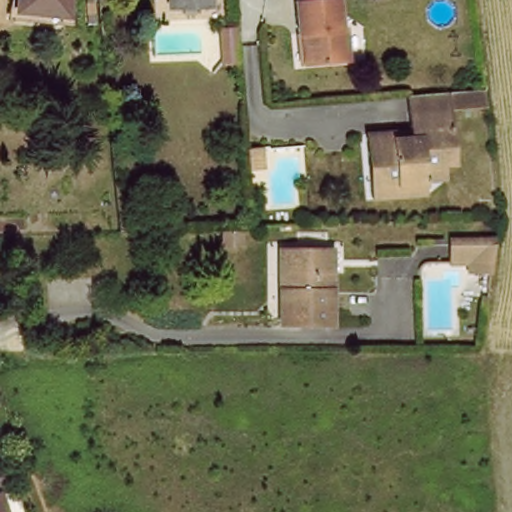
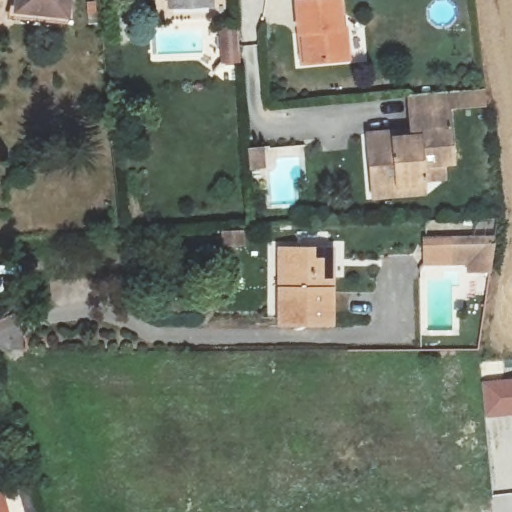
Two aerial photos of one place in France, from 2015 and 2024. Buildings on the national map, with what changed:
unchanged [(23,0),(77,0),(76,15),(22,9),(23,0)]
unchanged [(170,0),(212,0),(212,5),(170,7),(170,0)]
unchanged [(308,66),(307,35),(302,35),(300,4),(342,0),(344,30),(347,30),(350,64),(308,66)]
unchanged [(410,115),(408,98),(480,93),(482,110),(450,112),(410,115)]
unchanged [(373,202),(372,173),(369,135),(395,133),(395,141),(412,140),(410,115),(450,112),(453,162),(445,163),(447,183),(427,184),(429,200),(373,202)]
unchanged [(250,165),(248,145),(258,145),(260,164),(250,165)]
unchanged [(447,259),(447,243),(492,241),(489,258),(447,259)]
unchanged [(337,328),(285,328),(285,292),(285,251),(300,251),(338,250),(337,328)]
new [(512,381),(512,417),(486,419),(482,384),(512,381)]
unchanged [(0,419),(2,425),(0,425),(0,419)]
unchanged [(0,497),(3,496),(8,512),(0,512),(0,497)]

